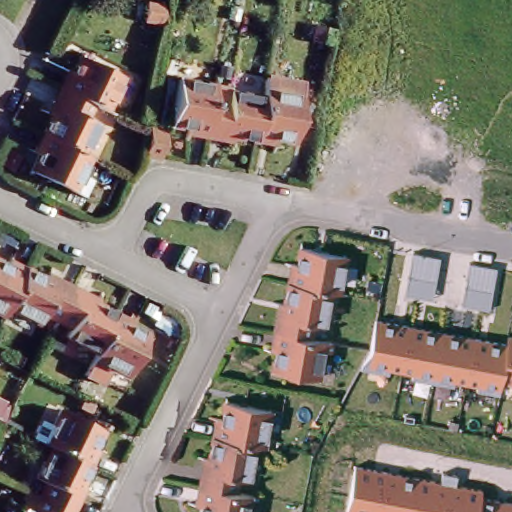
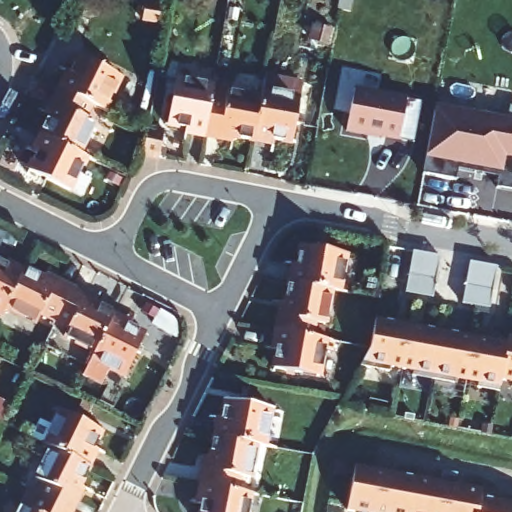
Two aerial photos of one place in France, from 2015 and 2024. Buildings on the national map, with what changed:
unchanged [(330,29),(328,40),(312,38),(313,26),(330,29)]
unchanged [(67,65),(71,66),(79,50),(120,71),(104,105),(92,99),(75,90),(59,82),(67,65)]
unchanged [(302,73),(292,132),(275,129),(274,133),(255,130),(263,87),(267,67),(302,73)]
unchanged [(186,121),(186,117),(169,115),(177,68),(213,75),(211,88),(204,124),(186,121)]
unchanged [(222,124),(221,128),(204,124),(211,88),(226,90),(228,80),(263,87),(255,130),(222,124)]
unchanged [(56,99),(51,96),(59,82),(75,90),(92,99),(86,112),(94,117),(79,148),(50,134),(41,129),(56,99)]
new [(406,97),(399,138),(371,133),(371,135),(346,130),(354,87),(406,97)]
new [(512,120),(512,189),(496,186),(500,168),(460,161),(456,179),(423,172),(435,106),(512,120)]
unchanged [(163,122),(158,148),(142,145),(146,126),(147,121),(147,119),(163,122)]
unchanged [(70,185),(29,165),(37,148),(33,146),(41,129),(50,134),(79,148),(87,152),(70,185)]
new [(500,168),(498,175),(458,168),(460,161),(500,168)]
unchanged [(334,284),(313,280),(290,276),(294,258),(298,259),(302,240),(347,249),(341,285),(334,284)]
unchanged [(440,255),(432,297),(405,292),(412,251),(440,255)]
unchanged [(2,314),(0,314),(0,262),(5,264),(8,260),(24,268),(5,307),(2,314)]
unchanged [(497,266),(490,308),(461,303),(469,261),(497,266)]
unchanged [(41,314),(36,323),(5,307),(24,268),(54,283),(56,279),(71,287),(54,320),(41,314)]
unchanged [(313,280),(334,284),(327,318),(316,317),(313,331),(276,324),(279,309),(283,309),(290,276),(313,280)]
unchanged [(71,287),(85,294),(84,298),(114,313),(94,351),(64,336),(68,327),(54,320),(71,287)]
unchanged [(114,313),(132,322),(130,326),(145,335),(125,375),(91,358),(94,351),(114,313)]
unchanged [(508,333),(512,334),(512,380),(502,378),(500,387),(367,362),(375,315),(506,341),(508,333)]
unchanged [(318,371),(274,362),(277,345),(273,344),(276,324),(313,331),(326,334),(318,371)]
unchanged [(220,411),(224,412),(228,395),(272,403),(266,440),(258,438),(216,430),(220,411)]
unchanged [(55,409),(97,430),(89,447),(93,449),(85,465),(45,446),(39,443),(55,409)]
unchanged [(205,463),(209,463),(216,430),(258,438),(251,473),(241,472),(238,486),(207,480),(202,479),(205,463)]
unchanged [(69,497),(74,499),(67,512),(65,512),(32,495),(39,482),(30,477),(45,446),(85,465),(69,497)]
unchanged [(480,495),(512,500),(512,512),(358,512),(345,509),(354,464),(482,486),(480,495)]
unchanged [(207,480),(238,486),(252,489),(247,512),(200,512),(203,499),(198,497),(202,479),(207,480)]
unchanged [(65,512),(12,512),(16,504),(26,508),(32,495),(65,512)]
unchanged [(291,501),(299,503),(303,504),(302,512),(289,512),(291,501)]

